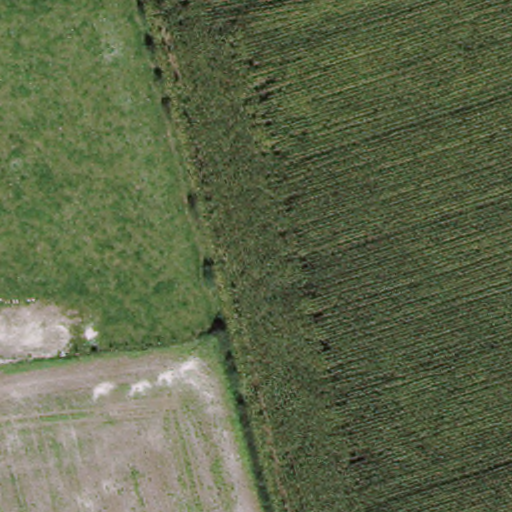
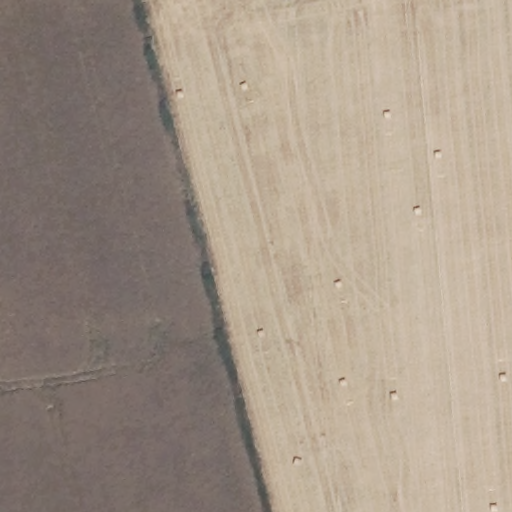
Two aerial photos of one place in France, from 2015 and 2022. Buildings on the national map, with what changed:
[]

